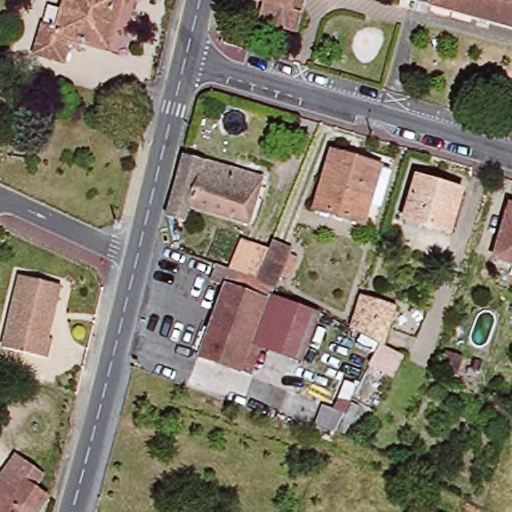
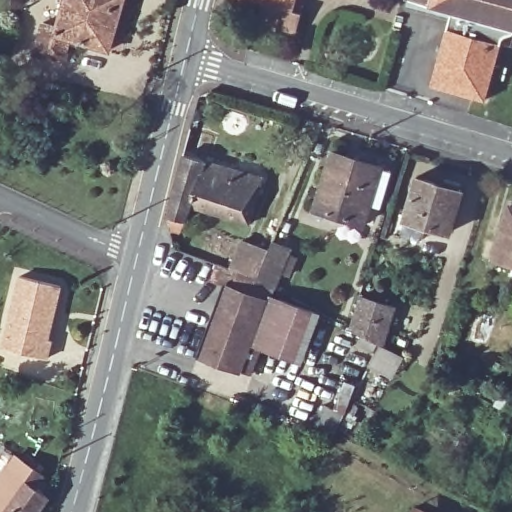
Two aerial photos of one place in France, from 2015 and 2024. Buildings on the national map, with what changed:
unchanged [(62,61),(33,52),(42,22),(56,26),(63,0),(121,0),(114,26),(107,49),(69,38),(62,61)]
unchanged [(283,31),(275,33),(270,28),(257,24),(262,6),(242,0),(304,0),(294,34),(283,31)]
unchanged [(410,0),(512,0),(512,30),(410,0)]
new [(446,26),(501,42),(484,101),(428,85),(446,26)]
unchanged [(181,156),(232,171),(232,177),(257,185),(246,224),(186,205),(181,220),(164,216),(165,213),(181,156)]
unchanged [(312,215),(329,157),(377,171),(360,228),(312,215)]
unchanged [(402,224),(415,182),(458,195),(446,237),(402,224)]
unchanged [(492,261),(507,209),(512,211),(512,267),(492,261)]
unchanged [(268,302),(263,318),(266,319),(257,346),(247,374),(198,356),(224,286),(208,280),(214,264),(250,278),(252,279),(267,242),(284,249),(268,287),(265,285),(260,298),(268,302)]
unchanged [(4,348),(19,276),(60,285),(49,339),(52,340),(49,358),(4,348)]
unchanged [(266,319),(273,298),(315,313),(298,360),(257,346),(266,319)]
unchanged [(390,381),(366,369),(376,348),(347,333),(357,301),(391,312),(379,349),(400,360),(390,381)]
unchanged [(447,349),(467,356),(462,368),(456,366),(451,375),(438,369),(447,349)]
unchanged [(324,401),(337,406),(347,378),(361,384),(356,401),(365,408),(353,431),(340,425),(336,432),(314,425),(324,401)]
unchanged [(0,476),(15,454),(40,474),(32,487),(45,496),(33,512),(0,512),(0,476)]

